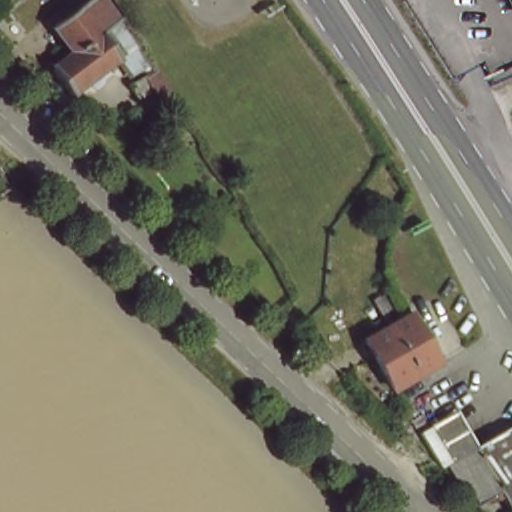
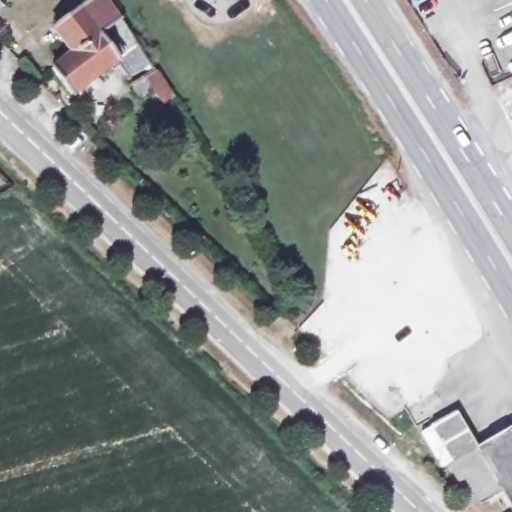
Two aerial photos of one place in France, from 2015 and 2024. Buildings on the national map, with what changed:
unchanged [(0,0),(5,6),(0,9),(0,0)]
unchanged [(80,0),(103,0),(113,14),(78,45),(58,19),(80,0)]
unchanged [(113,14),(127,26),(171,95),(160,103),(150,90),(140,98),(128,82),(135,77),(120,58),(75,97),(50,71),(78,45),(113,14)]
demolished [(439,367),(396,393),(369,347),(396,331),(411,322),(439,367)]
unchanged [(456,456),(450,460),(430,425),(465,405),(485,440),(512,424),(512,489),(491,501),(476,477),(470,480),(456,456)]

